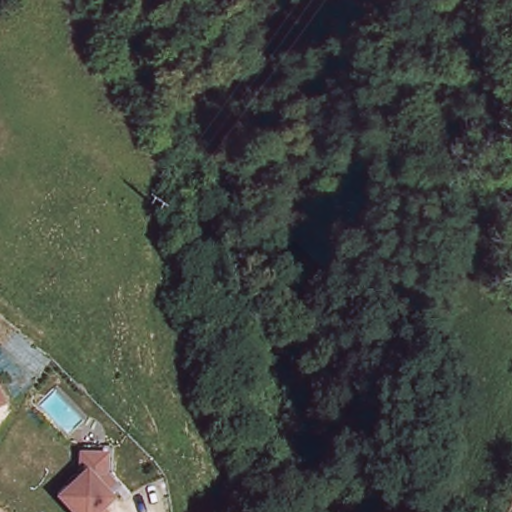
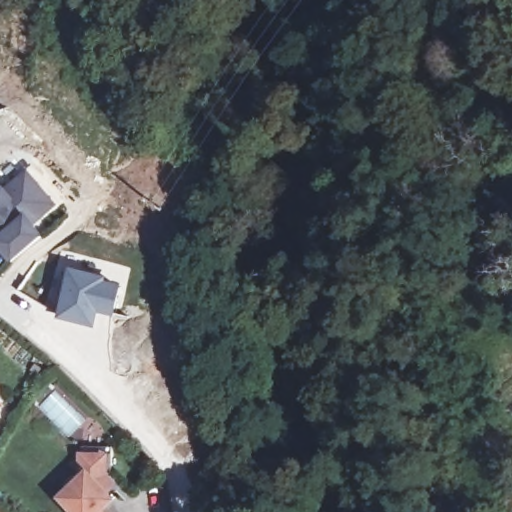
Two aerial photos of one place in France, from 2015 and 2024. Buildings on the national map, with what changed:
new [(1,187),(3,190),(25,170),(52,201),(30,221),(41,234),(12,259),(0,246),(0,188),(1,187)]
new [(70,267),(103,276),(101,280),(118,283),(112,310),(95,306),(92,321),(58,313),(70,267)]
unchanged [(82,458),(105,457),(105,470),(113,477),(105,486),(112,493),(102,504),(109,512),(81,512),(63,493),(82,475),(82,458)]

